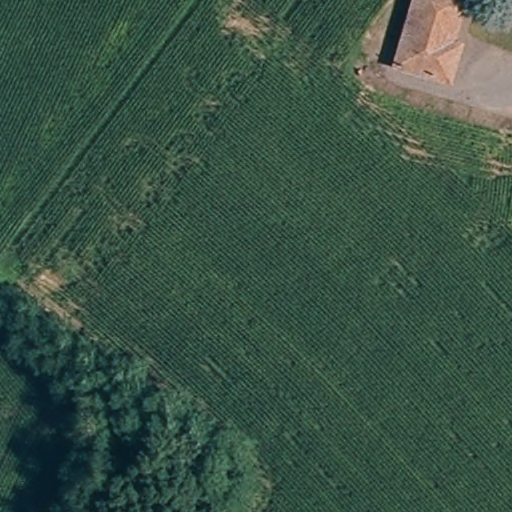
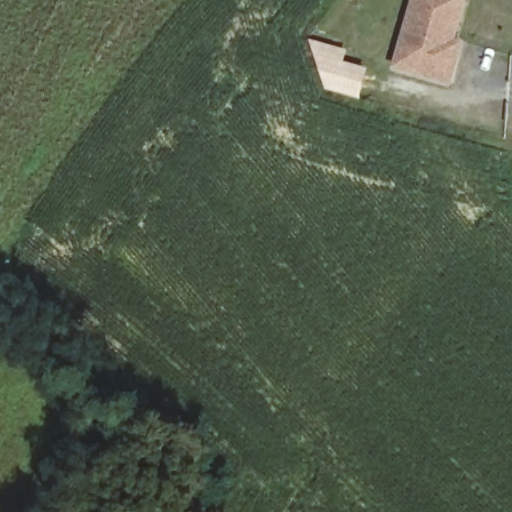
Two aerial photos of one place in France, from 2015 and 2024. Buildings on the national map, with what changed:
unchanged [(399,70),(416,0),(463,0),(453,54),(460,56),(454,84),(399,70)]
new [(321,89),(314,70),(322,42),(348,51),(344,62),(369,69),(360,100),(321,89)]

